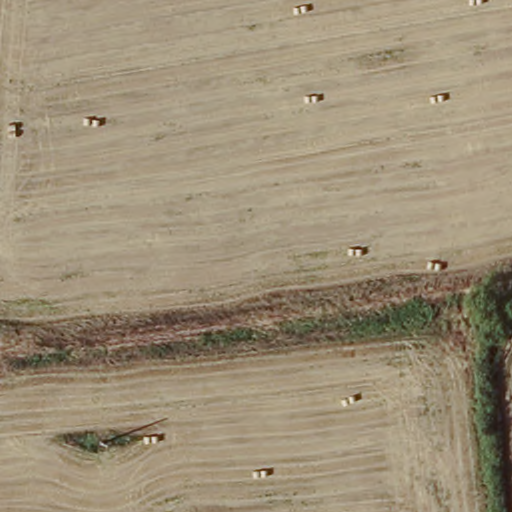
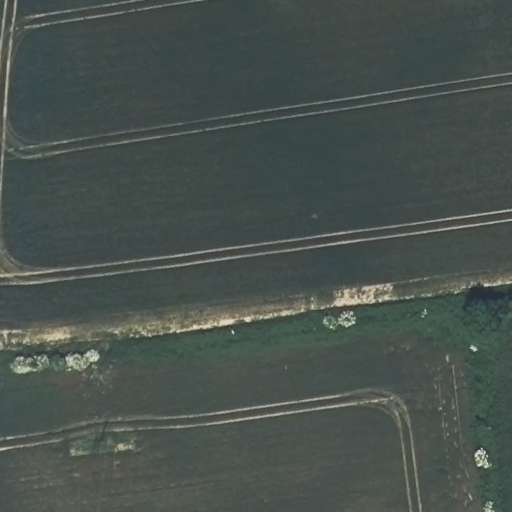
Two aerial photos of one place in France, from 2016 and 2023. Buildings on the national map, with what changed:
[]

